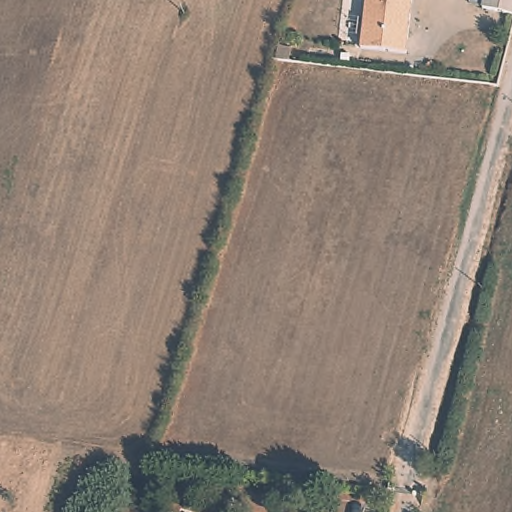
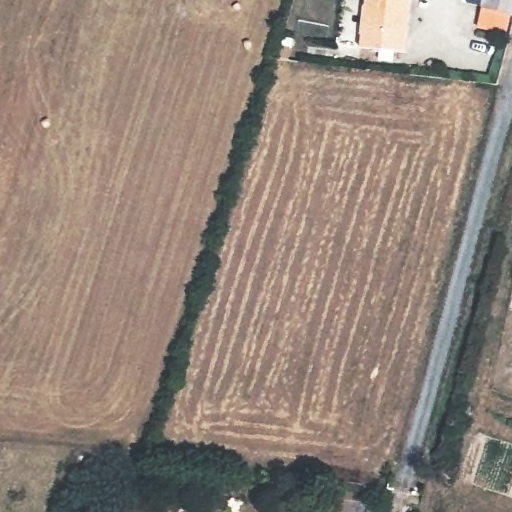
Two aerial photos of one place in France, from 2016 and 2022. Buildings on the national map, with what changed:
unchanged [(406,52),(361,47),(366,0),(412,0),(406,52)]
unchanged [(485,10),(487,0),(512,0),(512,15),(485,10)]

